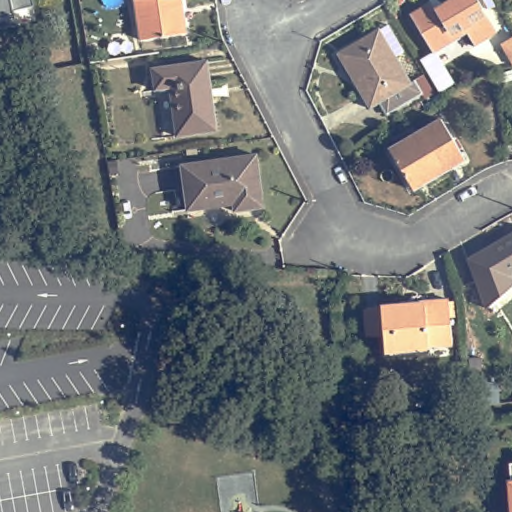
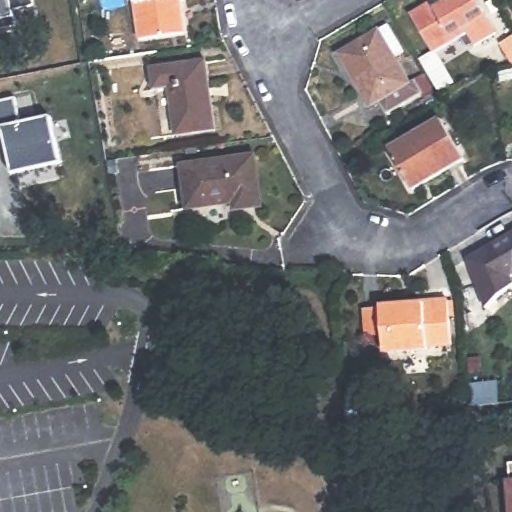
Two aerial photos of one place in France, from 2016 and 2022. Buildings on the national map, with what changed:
unchanged [(33,6),(12,12),(14,17),(15,27),(0,30),(0,0),(32,0),(33,6)]
unchanged [(191,33),(146,40),(140,0),(186,0),(191,33)]
unchanged [(473,46),(466,33),(432,53),(408,13),(429,1),(433,9),(448,0),(476,0),(495,33),(473,46)]
unchanged [(390,115),(383,102),(373,107),(351,69),(354,67),(345,52),(383,29),(384,30),(393,24),(408,51),(399,56),(414,82),(418,80),(427,75),(438,93),(429,98),(427,94),(390,115)]
unchanged [(512,36),(512,64),(499,43),(512,36)]
unchanged [(215,130),(176,136),(169,88),(154,90),(151,69),(206,61),(215,130)]
new [(15,99),(21,124),(50,117),(61,164),(12,175),(2,129),(0,129),(0,102),(15,99)]
unchanged [(439,119),(463,160),(411,190),(387,149),(439,119)]
unchanged [(260,155),(267,207),(238,211),(237,204),(191,210),(186,165),(260,155)]
unchanged [(512,279),(512,284),(495,291),(482,297),(480,290),(468,259),(512,233),(512,275),(510,277),(512,279)]
unchanged [(408,309),(408,312),(435,310),(435,306),(452,304),(455,350),(431,352),(432,354),(388,357),(387,340),(371,341),(369,314),(385,313),(384,311),(408,309)]
new [(495,383),(496,404),(470,407),(468,385),(495,383)]
unchanged [(512,480),(512,512),(509,512),(507,481),(512,480)]

